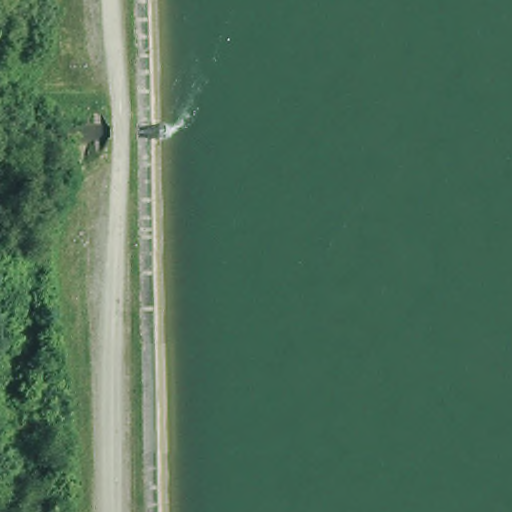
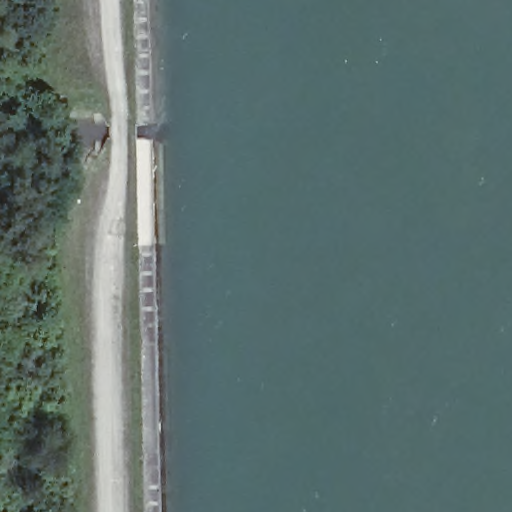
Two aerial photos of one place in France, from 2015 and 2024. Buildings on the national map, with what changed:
[]

